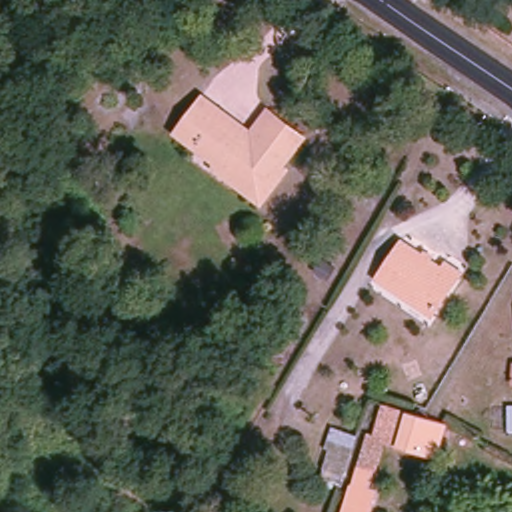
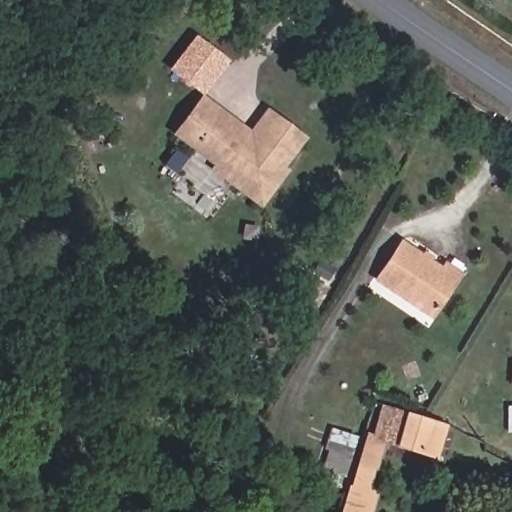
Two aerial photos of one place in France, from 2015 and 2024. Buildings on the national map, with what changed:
new [(169,70),(195,35),(229,60),(203,96),(169,70)]
unchanged [(214,167),(172,134),(199,100),(238,129),(246,136),(264,113),(302,139),(280,170),(285,174),(259,207),(229,185),(211,172),(214,167)]
unchanged [(457,273),(430,317),(373,281),(395,243),(439,270),(442,263),(457,273)]
unchanged [(505,431),(505,411),(493,411),(494,395),(507,395),(507,406),(512,406),(512,431),(505,431)]
unchanged [(437,426),(430,455),(376,439),(385,408),(415,419),(437,426)]
unchanged [(356,435),(342,486),(320,479),(327,451),(323,449),(329,429),(356,435)]
unchanged [(351,484),(358,466),(383,475),(374,512),(341,512),(347,484),(351,484)]

